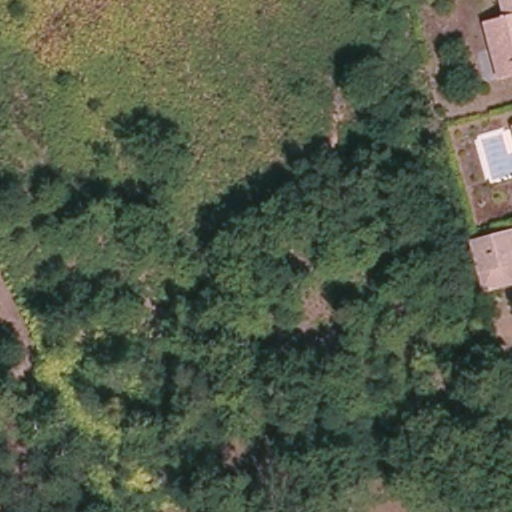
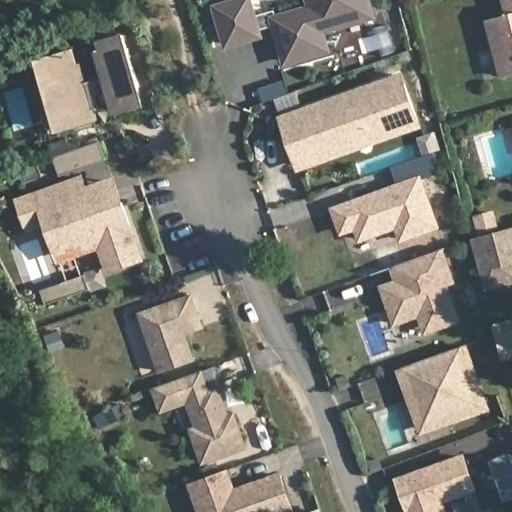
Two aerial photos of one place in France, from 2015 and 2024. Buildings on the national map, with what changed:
new [(375,18),(324,33),(332,53),(285,66),(273,26),(262,30),(264,39),(224,50),(211,5),(230,0),(254,0),(258,15),(305,2),(305,0),(371,0),(375,18)]
unchanged [(492,23),(509,17),(504,2),(512,0),(512,76),(506,77),(492,23)]
new [(98,120),(56,133),(36,60),(72,50),(76,64),(81,62),(87,82),(100,79),(93,51),(98,50),(96,41),(123,32),(145,105),(112,115),(109,105),(94,109),(98,120)]
new [(279,116),(403,72),(423,129),(298,172),(279,116)]
new [(105,161),(60,175),(50,145),(65,140),(67,146),(80,143),(81,147),(99,143),(105,161)]
new [(106,274),(98,250),(56,264),(44,228),(26,232),(15,199),(82,175),(85,186),(114,176),(145,261),(106,274)]
new [(359,242),(355,230),(340,235),(330,208),(421,175),(440,227),(400,241),(395,230),(359,242)]
unchanged [(473,242),(501,232),(512,230),(512,264),(480,273),(473,242)]
new [(390,267),(445,249),(457,283),(449,286),(462,322),(425,335),(419,317),(394,326),(380,286),(395,280),(390,267)]
new [(187,334),(197,361),(159,373),(139,312),(193,294),(205,328),(187,334)]
new [(493,410),(422,435),(398,368),(469,344),(493,410)]
new [(235,411),(249,449),(201,465),(189,430),(195,427),(187,404),(160,413),(151,388),(204,371),(210,389),(220,386),(230,413),(235,411)]
new [(446,503),(449,512),(407,512),(394,477),(465,453),(478,490),(446,502),(446,503)]
new [(229,468),(236,487),(282,471),(296,512),(199,512),(188,482),(229,468)]

